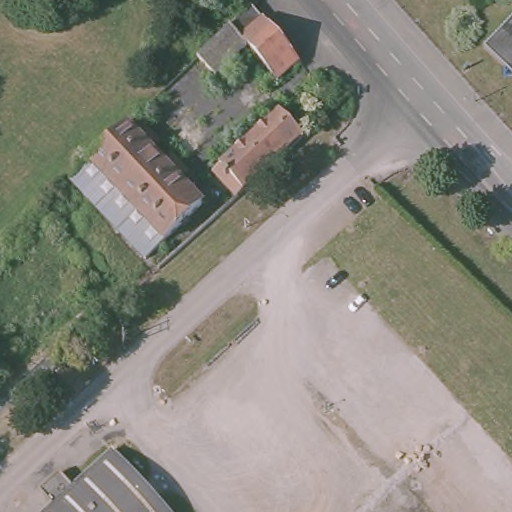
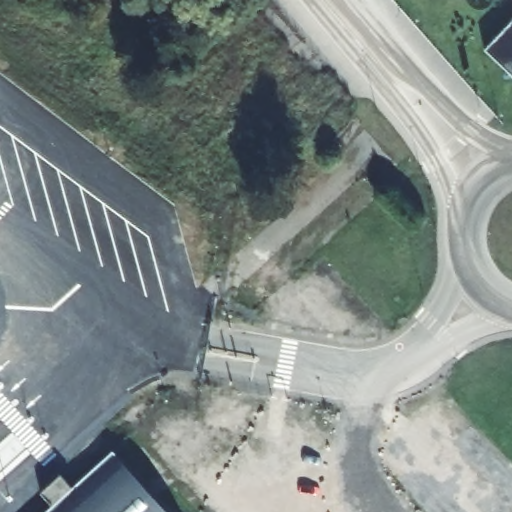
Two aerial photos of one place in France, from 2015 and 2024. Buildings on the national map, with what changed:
demolished [(294,63),(274,81),(228,29),(247,10),(294,63)]
unchanged [(512,15),(512,72),(484,46),(512,15)]
demolished [(217,176),(285,115),(305,136),(239,198),(217,176)]
demolished [(116,240),(132,224),(120,209),(102,225),(87,208),(104,191),(90,177),(74,195),(69,189),(65,185),(106,146),(117,134),(122,131),(130,139),(136,134),(150,148),(143,154),(159,171),(165,167),(177,183),(172,188),(194,211),(155,247),(148,240),(131,256),(116,240)]
unchanged [(95,452),(99,448),(157,512),(29,512),(76,469),(66,459),(85,441),(95,452)]

